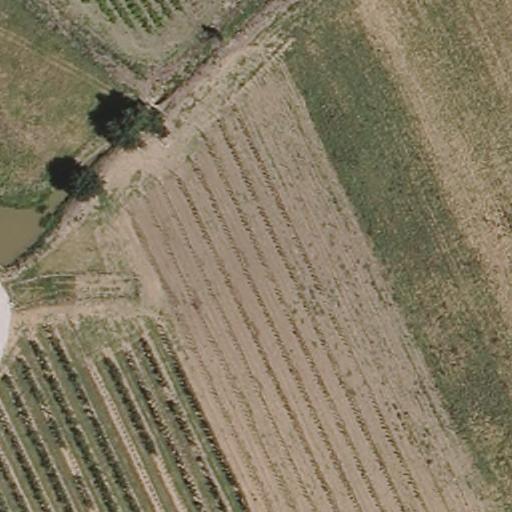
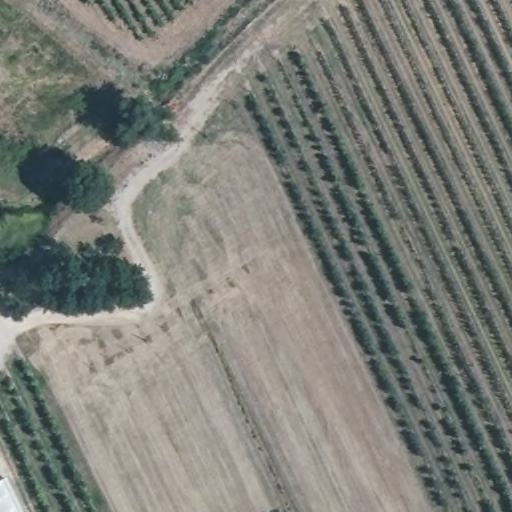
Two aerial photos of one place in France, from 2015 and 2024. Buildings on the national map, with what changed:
new [(5,477),(22,512),(0,512),(0,480),(5,477)]

